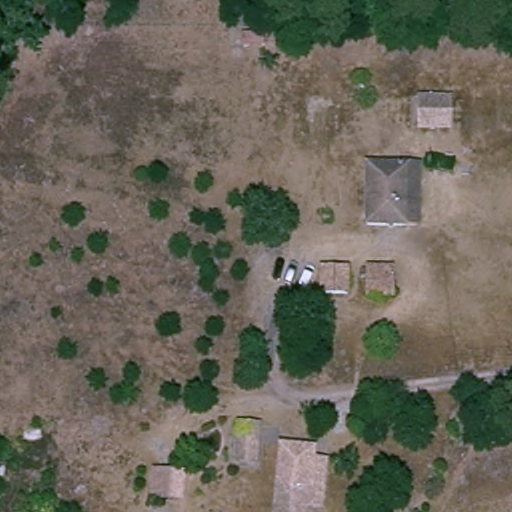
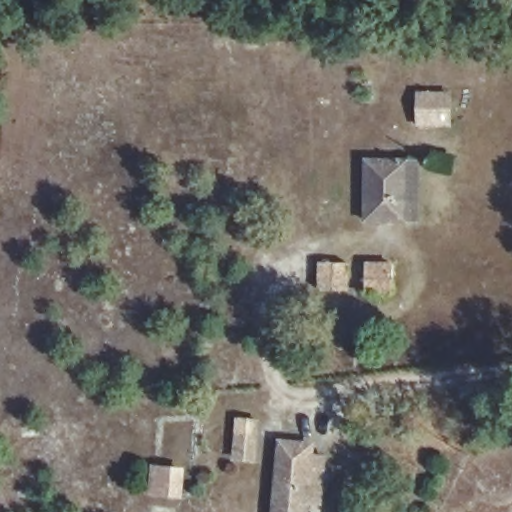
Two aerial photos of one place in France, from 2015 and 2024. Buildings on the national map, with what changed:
unchanged [(447,124),(439,126),(415,126),(415,92),(448,91),(447,124)]
unchanged [(376,223),(362,223),(364,164),(402,164),(417,165),(416,209),(415,223),(415,224),(410,224),(401,223),(376,223)]
unchanged [(353,264),(352,288),(326,287),(326,262),(353,264)]
unchanged [(372,264),(399,264),(399,275),(398,290),(371,289),(372,264)]
unchanged [(255,426),(253,464),(232,464),(235,424),(255,426)]
unchanged [(301,458),(316,459),(313,507),(298,506),(298,512),(269,512),(272,446),(301,448),(301,458)]
unchanged [(184,466),(182,501),(146,499),(148,464),(184,466)]

